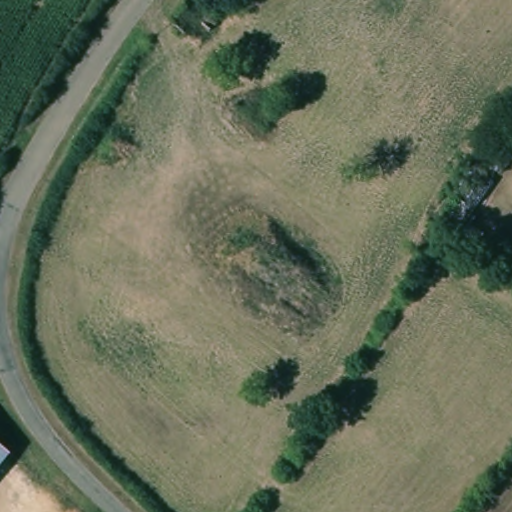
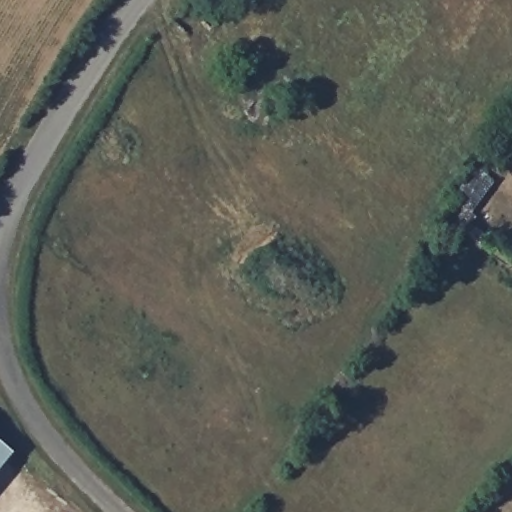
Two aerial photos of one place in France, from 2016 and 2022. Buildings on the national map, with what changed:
unchanged [(0,471),(0,441),(15,453),(0,471)]

